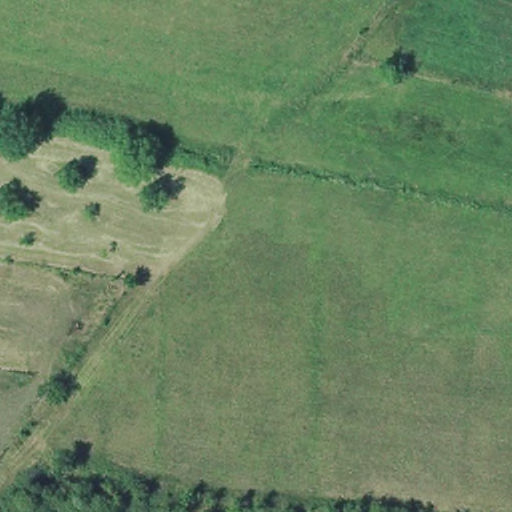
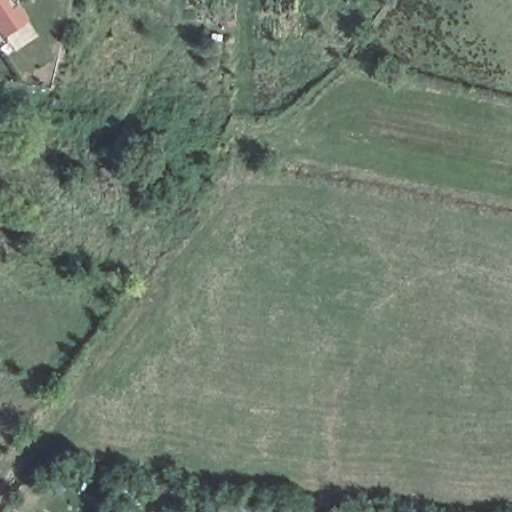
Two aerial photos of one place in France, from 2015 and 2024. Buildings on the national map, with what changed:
new [(31,21),(5,39),(0,31),(0,0),(16,0),(16,1),(31,21)]

